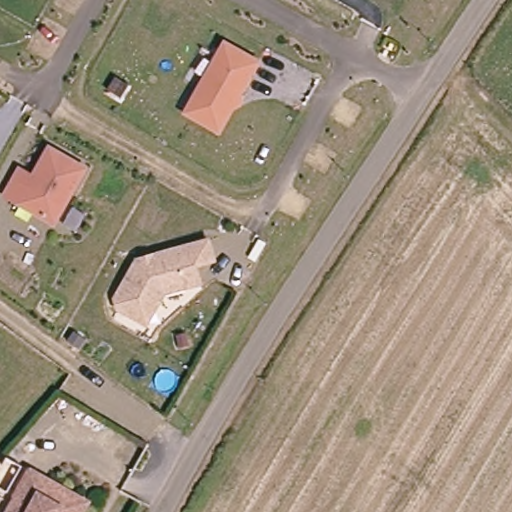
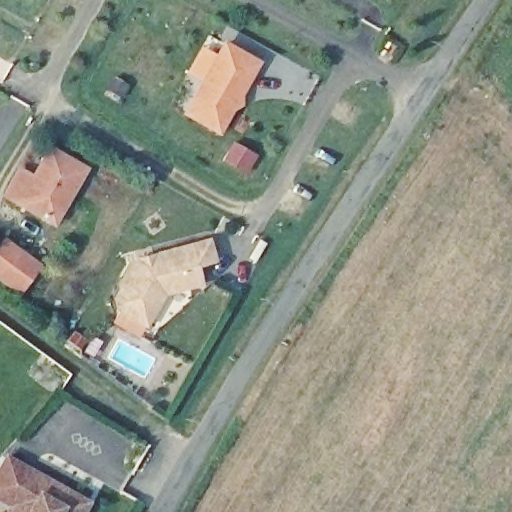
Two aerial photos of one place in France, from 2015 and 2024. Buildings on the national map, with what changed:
unchanged [(223,39),(260,60),(219,132),(183,112),(223,39)]
unchanged [(53,219),(4,191),(19,165),(32,173),(49,145),(84,165),(53,219)]
unchanged [(148,318),(120,303),(117,293),(139,255),(144,258),(152,256),(154,250),(208,235),(213,254),(196,259),(202,277),(190,280),(165,287),(148,318)]
new [(42,264),(19,296),(0,282),(0,242),(4,236),(42,264)]
unchanged [(7,512),(16,494),(9,490),(0,485),(0,460),(5,450),(25,461),(88,494),(78,512),(7,512)]

